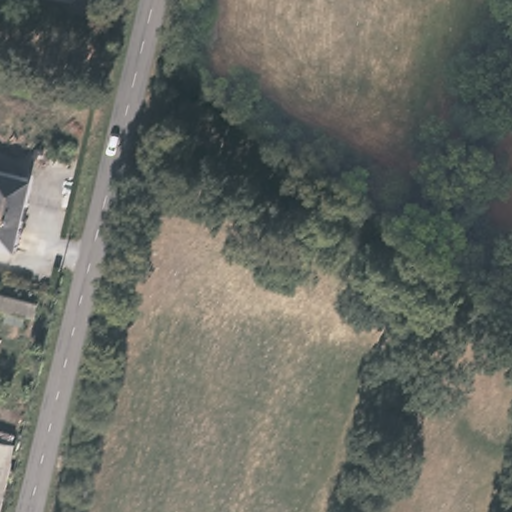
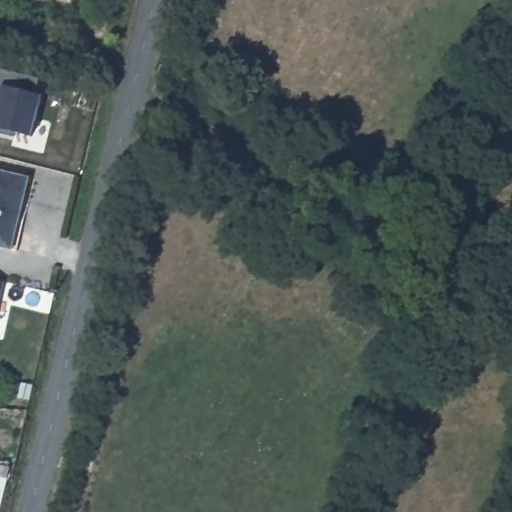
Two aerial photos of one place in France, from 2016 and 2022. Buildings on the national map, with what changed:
new [(0,130),(0,99),(0,97),(0,76),(35,84),(34,95),(42,98),(32,138),(0,130)]
unchanged [(0,175),(30,182),(13,252),(0,249),(0,175)]
new [(0,305),(0,281),(5,282),(0,305)]
unchanged [(0,497),(0,477),(4,477),(0,497)]

